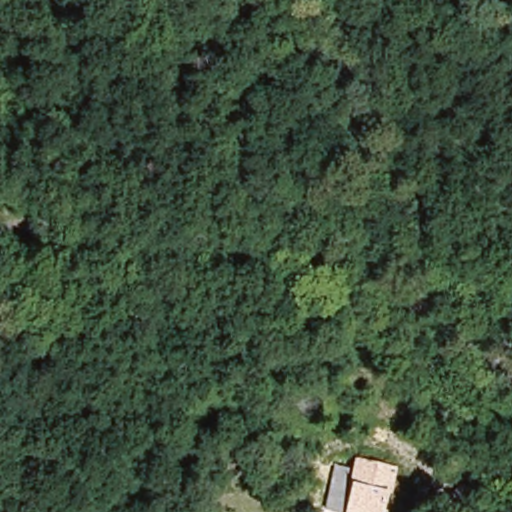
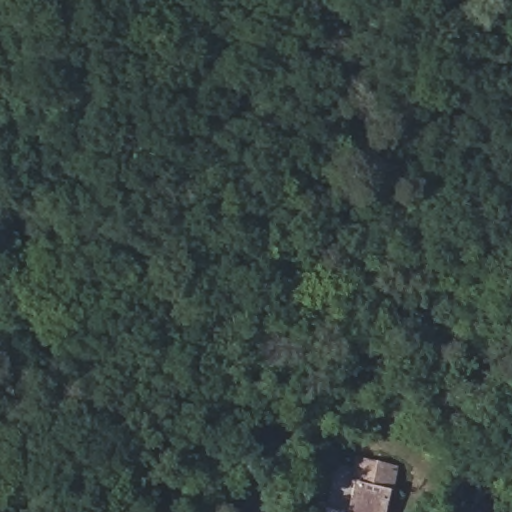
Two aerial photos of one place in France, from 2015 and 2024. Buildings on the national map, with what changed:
unchanged [(385,470),(377,512),(344,512),(345,508),(352,463),(385,470)]

